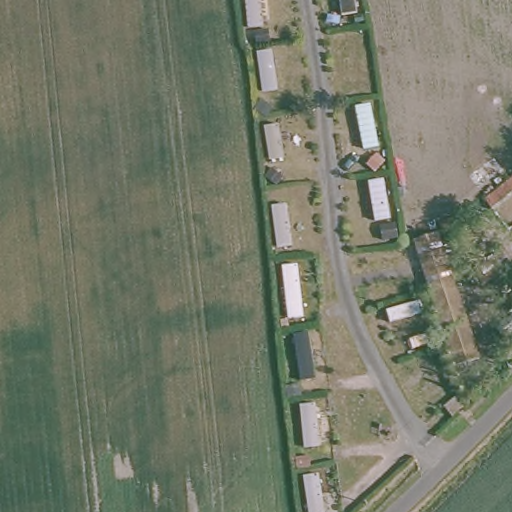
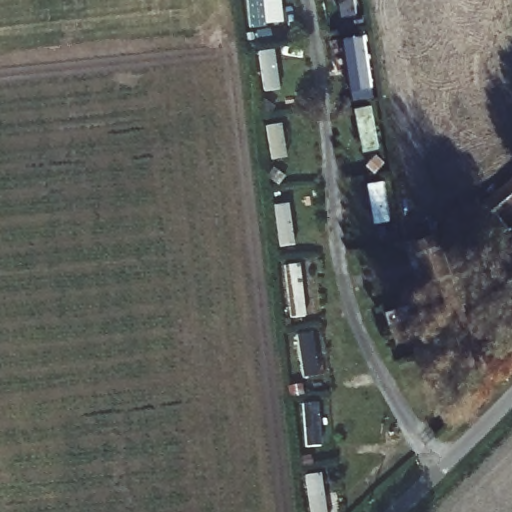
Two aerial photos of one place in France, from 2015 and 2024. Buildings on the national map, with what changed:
unchanged [(512,173),(512,188),(483,211),(477,200),(512,173)]
unchanged [(477,361),(455,368),(421,262),(415,242),(440,233),(441,239),(477,361)]
unchanged [(512,267),(512,275),(490,290),(479,275),(503,257),(512,267)]
unchanged [(447,408),(445,406),(457,398),(465,411),(455,421),(447,408)]

